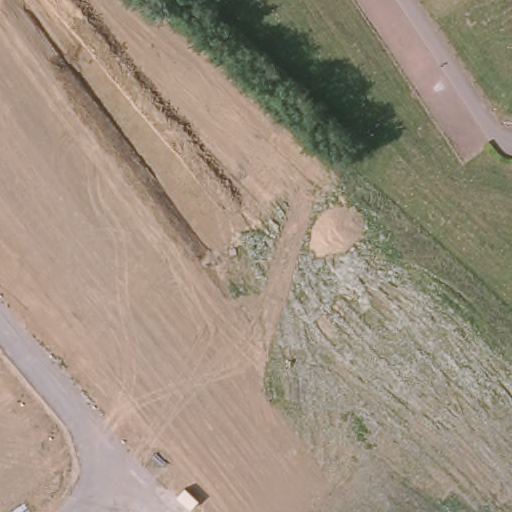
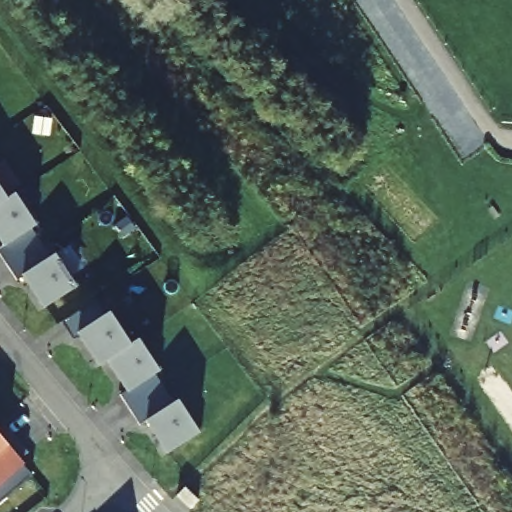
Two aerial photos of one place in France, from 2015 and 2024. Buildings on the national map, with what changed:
new [(0,203),(0,187),(7,198),(0,203)]
new [(14,193),(35,225),(28,231),(1,246),(0,244),(0,203),(7,198),(14,193)]
new [(13,281),(0,259),(0,247),(1,246),(28,231),(48,260),(21,275),(13,281)]
new [(48,260),(59,253),(79,285),(42,308),(21,275),(48,260)]
new [(94,320),(85,307),(93,302),(103,316),(109,312),(129,345),(105,362),(98,366),(76,333),(94,320)]
new [(137,340),(158,371),(151,376),(125,391),(105,362),(129,345),(137,340)]
new [(146,422),(138,427),(118,396),(125,391),(151,376),(169,404),(146,422)]
new [(199,432),(166,454),(146,422),(169,404),(177,399),(199,432)]
new [(0,427),(13,441),(0,453),(0,427)]
new [(19,471),(28,479),(0,502),(0,453),(13,441),(30,462),(19,471)]

